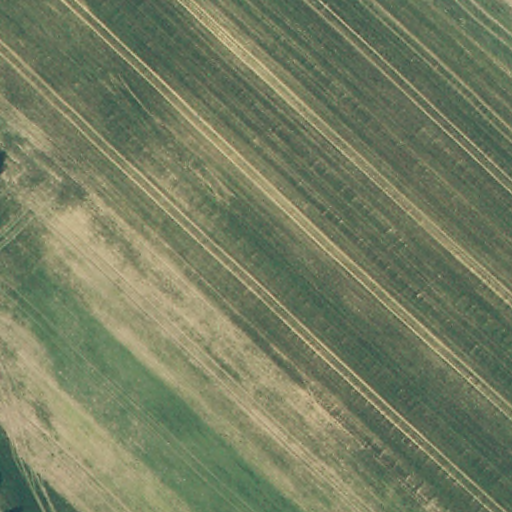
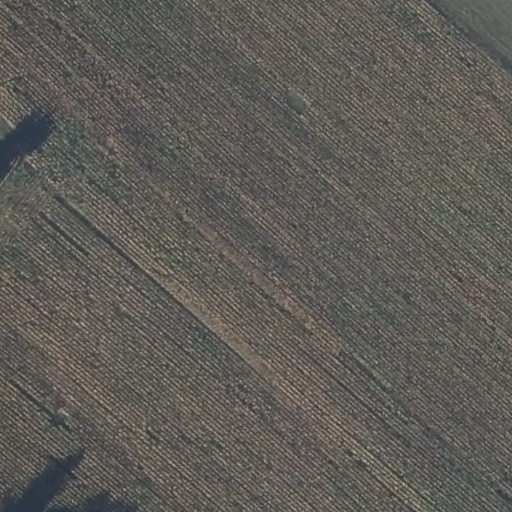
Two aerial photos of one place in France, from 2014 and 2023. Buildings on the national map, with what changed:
[]

